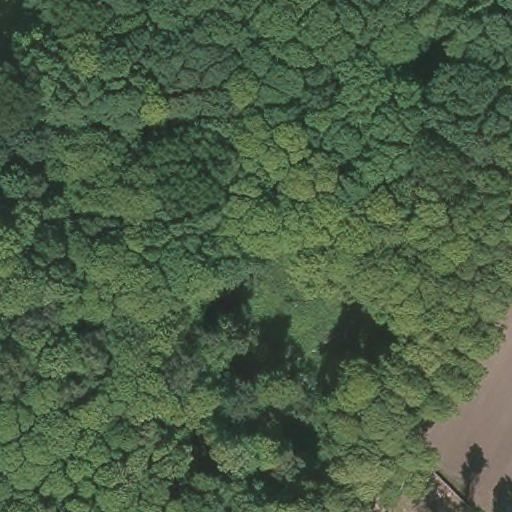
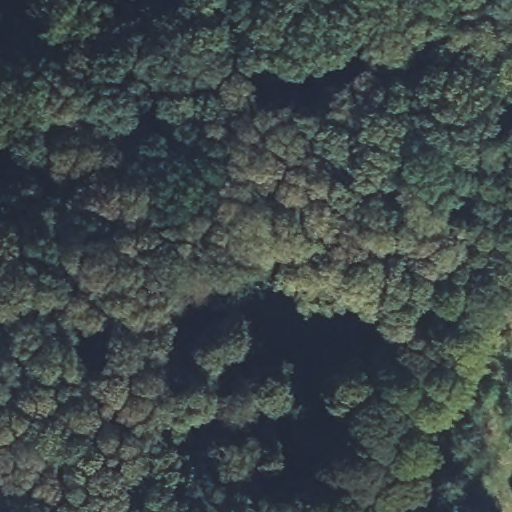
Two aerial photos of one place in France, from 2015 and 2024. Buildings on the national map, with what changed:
[]

